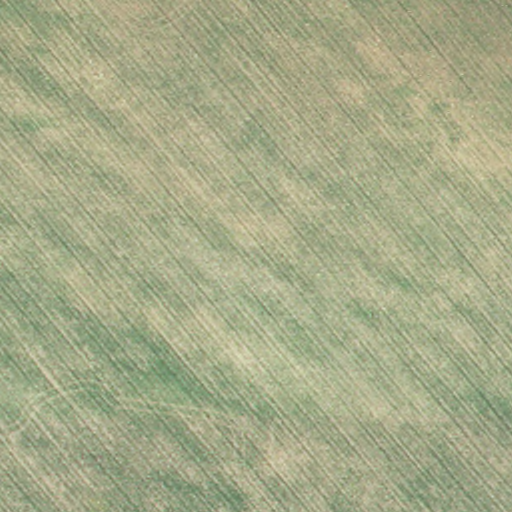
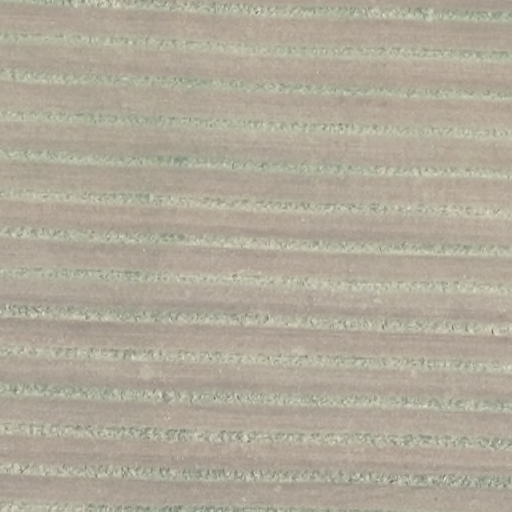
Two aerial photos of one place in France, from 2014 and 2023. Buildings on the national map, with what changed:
[]

